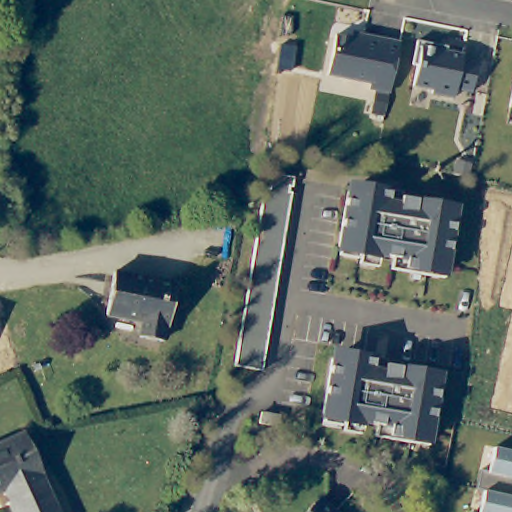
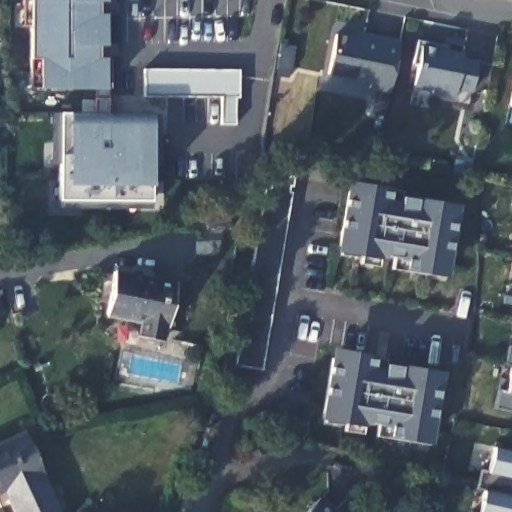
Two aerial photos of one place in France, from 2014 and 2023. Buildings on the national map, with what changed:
new [(107,59),(112,61),(112,88),(117,120),(161,113),(161,163),(152,165),(152,185),(152,202),(150,210),(58,208),(58,198),(57,164),(52,164),(51,114),(61,114),(98,118),(94,87),(40,87),(30,87),(31,57),(31,0),(109,0),(107,59)]
unchanged [(390,93),(386,115),(373,114),(377,91),(372,89),(373,83),(330,74),(337,34),(353,32),(401,40),(390,93)]
unchanged [(473,91),(458,88),(456,98),(432,94),(433,89),(417,86),(422,62),(416,62),(420,41),(447,44),(447,48),(465,51),(464,57),(480,59),(473,91)]
new [(240,97),(235,97),(234,124),(222,124),(221,97),(145,97),(145,69),(239,70),(240,97)]
unchanged [(508,106),(512,88),(512,107),(508,106)]
unchanged [(292,178),(291,188),(287,187),(286,193),(289,193),(258,371),(237,367),(270,174),(292,178)]
unchanged [(428,275),(392,270),(393,258),(381,256),(380,259),(378,267),(358,264),(361,255),(357,255),(357,259),(342,257),(344,248),(341,247),(350,192),(370,196),(372,188),(393,191),(419,196),(418,201),(440,205),(438,212),(458,216),(450,270),(447,270),(446,278),(428,275)]
unchanged [(169,325),(165,324),(162,339),(141,335),(144,320),(107,313),(116,271),(177,283),(169,325)]
unchanged [(495,408),(499,390),(506,392),(512,366),(505,364),(508,346),(512,348),(512,412),(495,408)]
unchanged [(416,442),(380,436),(382,425),(368,423),(368,426),(367,434),(347,431),(348,423),(345,422),(345,426),(331,424),(332,415),(330,415),(338,360),(358,363),(360,355),(381,359),(407,363),(407,368),(427,372),(427,379),(447,382),(437,437),(436,437),(435,445),(416,442)]
unchanged [(276,417),(274,427),(255,424),(257,413),(276,417)]
unchanged [(61,512),(17,512),(9,494),(0,498),(0,441),(23,430),(61,512)]
unchanged [(477,486),(481,469),(488,470),(495,447),(512,451),(512,512),(479,512),(485,489),(477,486)]
unchanged [(340,512),(299,512),(317,492),(340,512)]

